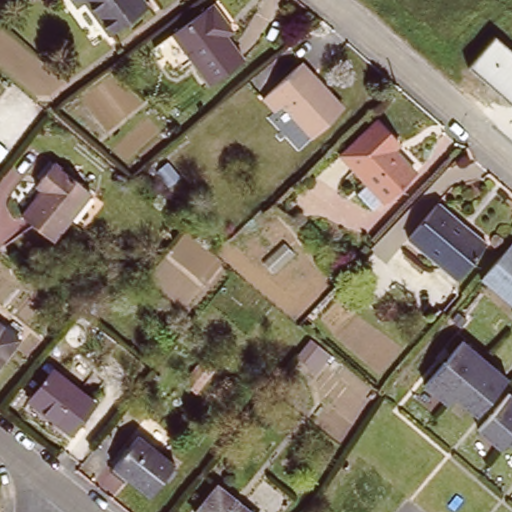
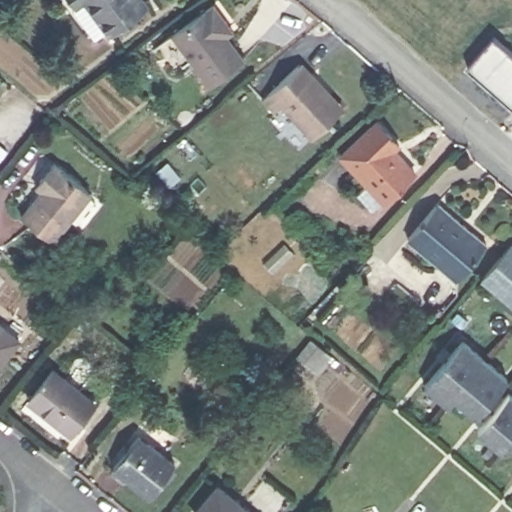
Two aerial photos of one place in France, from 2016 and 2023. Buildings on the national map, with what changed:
unchanged [(89,1),(81,7),(76,0),(146,0),(151,7),(114,35),(89,1)]
unchanged [(205,86),(167,35),(208,4),(222,23),(228,31),(221,36),(239,60),(205,86)]
unchanged [(495,36),(512,51),(512,106),(468,67),(495,36)]
unchanged [(281,105),(274,111),(262,99),(299,65),(300,63),(312,75),(323,86),(343,109),(340,112),(312,138),(281,105)]
unchanged [(239,111),(229,99),(244,86),(254,98),(239,111)]
unchanged [(357,194),(367,184),(340,155),(377,121),(393,138),(400,145),(394,150),(415,172),(405,181),(383,201),(382,200),(372,209),(357,194)]
unchanged [(1,160),(0,160),(0,159),(1,160)]
unchanged [(52,242),(21,216),(42,191),(35,186),(40,181),(54,164),(91,194),(52,242)]
unchanged [(455,280),(407,240),(437,203),(486,244),(455,280)]
unchanged [(511,244),(512,245),(512,307),(480,280),(511,244)]
unchanged [(93,315),(86,310),(94,300),(101,305),(93,315)]
unchanged [(19,341),(0,365),(0,326),(19,341)]
unchanged [(317,372),(311,367),(298,356),(311,340),(325,351),(330,356),(317,372)]
unchanged [(476,416),(454,398),(447,406),(424,386),(462,341),(507,379),(476,416)]
unchanged [(196,393),(184,384),(201,361),(213,370),(196,393)]
unchanged [(153,384),(148,380),(154,373),(159,377),(153,384)]
unchanged [(70,440),(28,406),(53,375),(95,408),(70,440)]
unchanged [(500,450),(477,431),(508,393),(512,396),(512,446),(506,442),(500,450)]
unchanged [(138,436),(175,465),(150,497),(113,468),(138,436)]
unchanged [(217,486),(249,512),(195,512),(217,486)]

